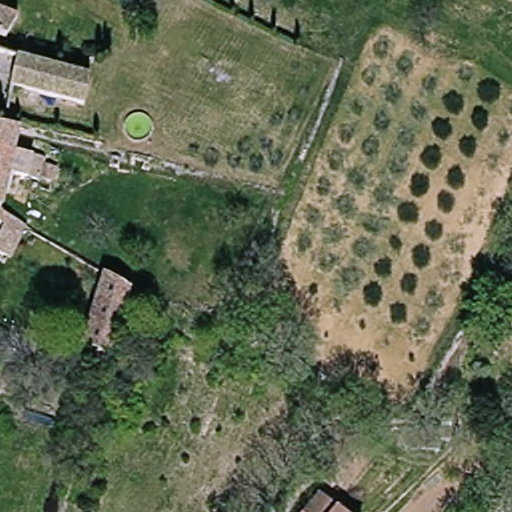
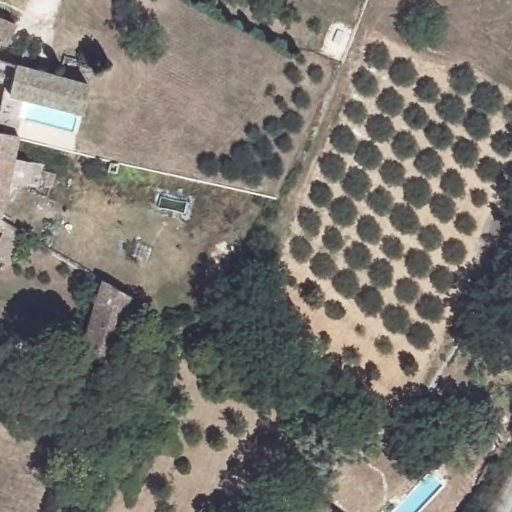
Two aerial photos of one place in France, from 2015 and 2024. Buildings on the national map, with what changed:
unchanged [(25,58),(95,78),(87,105),(38,93),(30,125),(19,123),(30,86),(0,77),(0,9),(40,24),(25,58)]
unchanged [(36,135),(29,162),(67,173),(60,197),(21,184),(9,215),(0,211),(0,127),(20,131),(30,133),(36,135)]
unchanged [(0,211),(9,215),(0,231),(0,211)]
unchanged [(7,257),(23,224),(38,232),(18,265),(7,257)]
unchanged [(99,278),(128,294),(109,351),(105,365),(74,355),(99,278)]
unchanged [(339,512),(312,512),(323,499),(339,512)]

